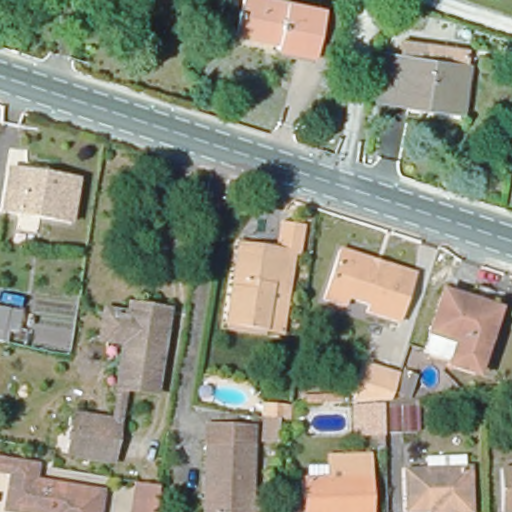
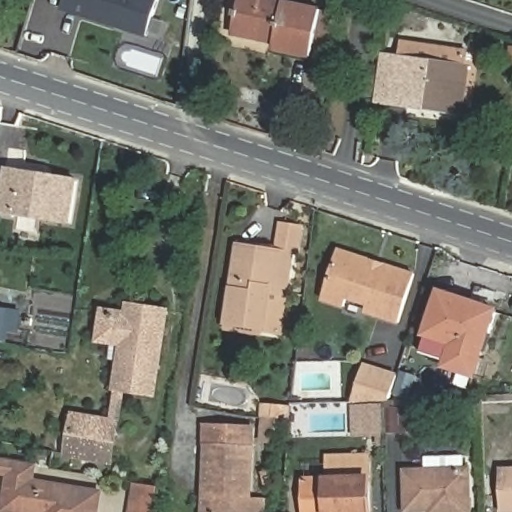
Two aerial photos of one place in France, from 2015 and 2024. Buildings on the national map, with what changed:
new [(65,0),(158,0),(148,34),(114,24),(105,20),(62,8),(65,0)]
unchanged [(306,56),(303,64),(263,54),(265,47),(225,37),(233,0),(252,0),(330,19),(321,60),(306,56)]
unchanged [(455,42),(438,41),(439,23),(456,24),(455,42)]
unchanged [(390,106),(375,104),(378,53),(395,55),(398,55),(400,39),(463,47),(461,64),(470,64),(463,115),(446,113),(403,108),(390,106)]
unchanged [(80,227),(2,213),(9,165),(85,180),(80,227)]
unchanged [(231,328),(239,292),(243,293),(250,263),(245,262),(248,249),(263,252),(282,255),(288,225),(310,230),(307,259),(298,258),(291,299),(285,338),(268,335),(231,328)]
unchanged [(400,324),(368,313),(370,306),(345,298),(342,305),(325,300),(341,248),(373,259),(385,262),(416,273),(400,324)]
unchanged [(430,336),(427,334),(442,289),(500,309),(476,379),(443,368),(446,359),(426,353),(430,336)]
unchanged [(160,402),(129,397),(117,465),(67,457),(75,414),(108,419),(120,352),(100,349),(105,310),(126,313),(127,305),(174,314),(160,402)]
unchanged [(14,347),(0,345),(0,309),(17,312),(14,347)]
unchanged [(367,423),(367,418),(366,396),(359,397),(371,366),(400,374),(395,395),(385,396),(385,418),(385,423),(367,423)]
unchanged [(277,446),(265,446),(266,426),(278,426),(277,446)]
unchanged [(204,490),(207,454),(210,430),(257,433),(250,506),(263,507),(262,512),(202,512),(204,490)]
unchanged [(16,476),(0,473),(0,462),(41,469),(40,482),(49,483),(54,484),(50,512),(11,512),(16,476)]
unchanged [(503,509),(503,467),(512,466),(512,509),(503,509)]
unchanged [(433,508),(411,508),(409,470),(468,469),(470,511),(448,512),(433,512),(433,508)]
unchanged [(308,502),(318,501),(318,495),(308,496),(307,480),(372,477),(373,499),(373,512),(309,512),(308,502)]
unchanged [(102,512),(50,512),(54,484),(105,491),(102,512)]
unchanged [(157,512),(132,512),(136,486),(161,489),(157,512)]

